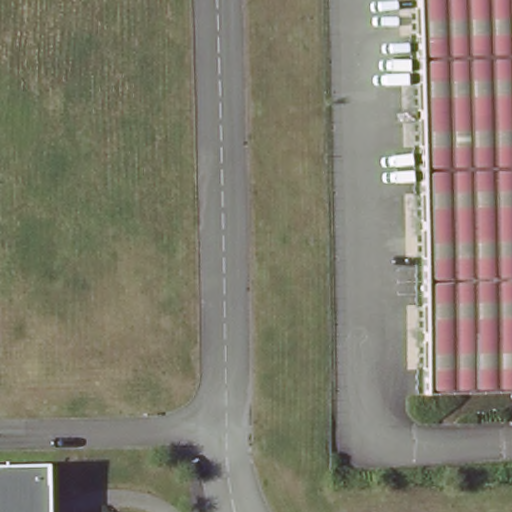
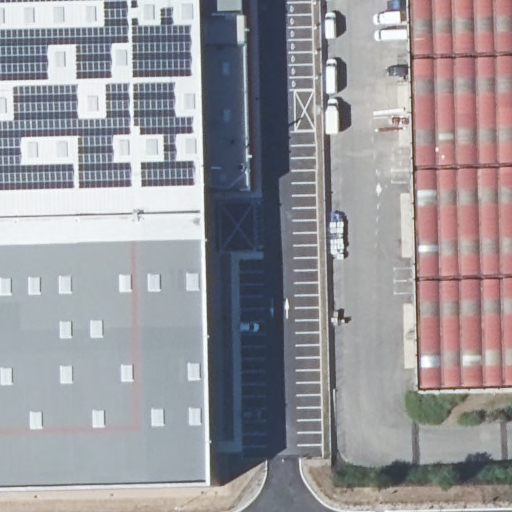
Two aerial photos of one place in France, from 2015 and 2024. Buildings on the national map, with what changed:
new [(212,46),(213,137),(216,175),(222,488),(0,492),(0,0),(210,0),(212,46)]
new [(252,13),(253,105),(255,190),(222,189),(221,175),(216,175),(213,137),(212,46),(210,0),(252,0),(252,13)]
unchanged [(420,395),(409,0),(512,0),(512,392),(420,395)]
demolished [(45,463),(46,512),(0,512),(0,465),(45,463)]

